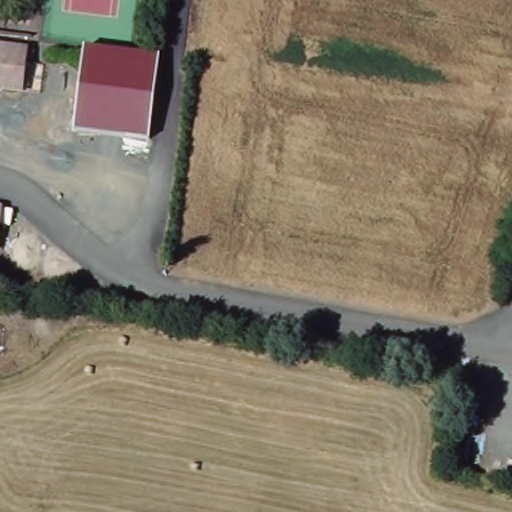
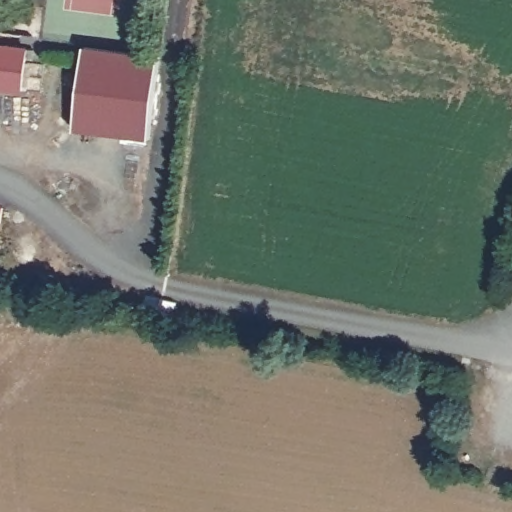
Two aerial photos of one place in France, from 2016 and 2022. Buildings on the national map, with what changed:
unchanged [(161,55),(150,139),(74,130),(85,46),(161,55)]
unchanged [(24,90),(0,88),(0,47),(29,50),(24,90)]
unchanged [(0,237),(0,207),(5,208),(0,237)]

